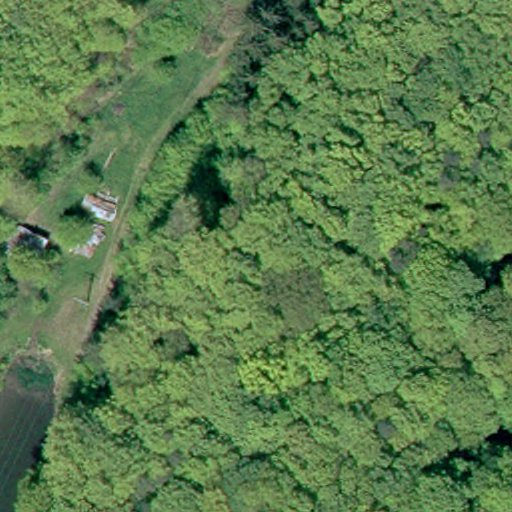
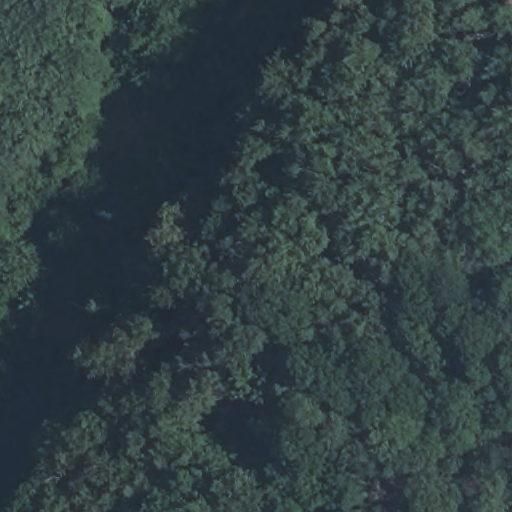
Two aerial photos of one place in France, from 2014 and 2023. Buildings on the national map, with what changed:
unchanged [(11,205),(26,210),(18,235),(3,230),(11,205)]

